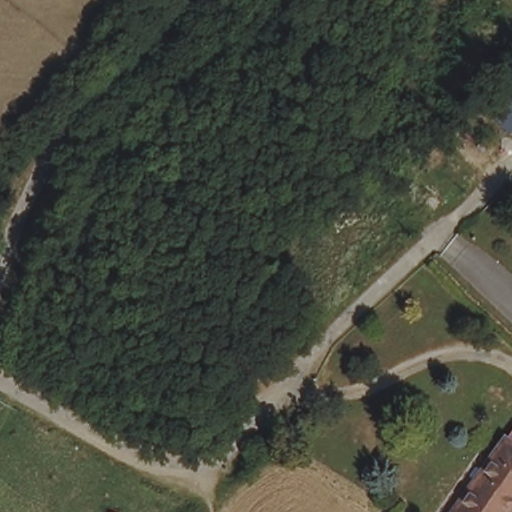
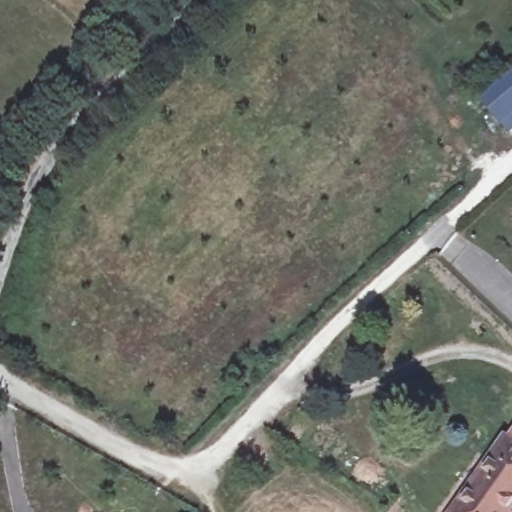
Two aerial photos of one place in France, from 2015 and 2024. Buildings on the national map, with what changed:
new [(482,100),(512,74),(512,133),(511,134),(482,100)]
unchanged [(477,488),(471,484),(512,434),(512,503),(508,508),(505,505),(499,512),(459,512),(477,488)]

